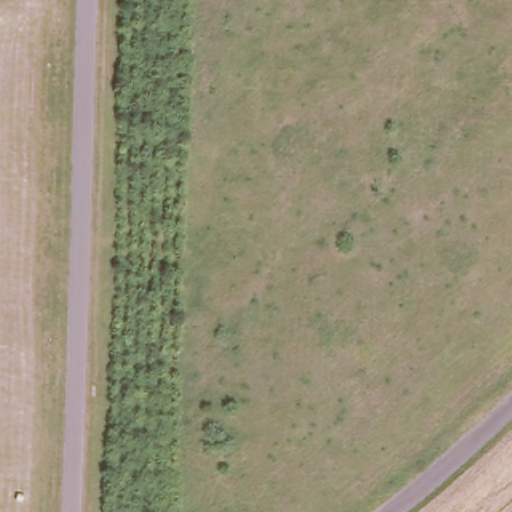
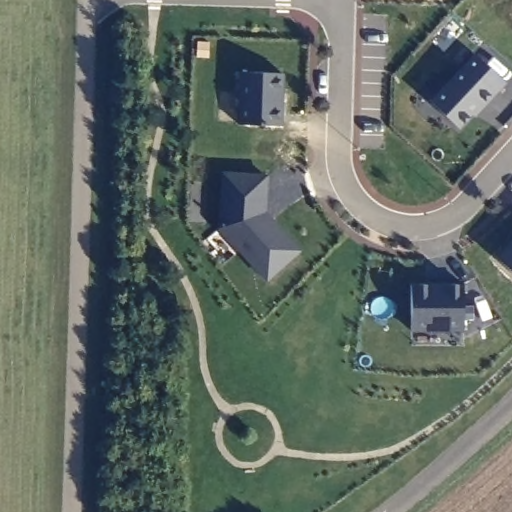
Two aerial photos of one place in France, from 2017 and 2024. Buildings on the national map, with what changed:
new [(487,112),(485,109),(463,133),(435,107),(479,59),(510,87),(487,112)]
new [(283,111),(280,111),(283,126),(239,125),(241,73),(284,74),(283,111)]
new [(223,233),(227,178),(270,180),(267,222),(273,228),(275,226),(302,256),(270,285),(223,233)]
new [(500,261),(512,248),(512,272),(500,261)]
new [(422,295),(422,283),(451,283),(464,286),(463,333),(413,333),(413,295),(422,295)]

